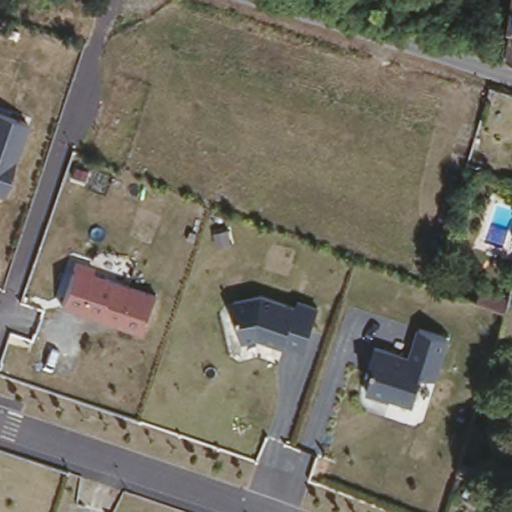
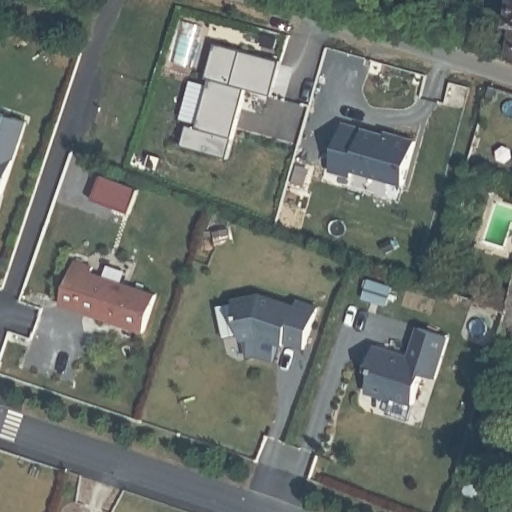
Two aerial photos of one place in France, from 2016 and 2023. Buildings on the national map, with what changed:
new [(279,59),(271,94),(245,87),(226,154),(181,143),(187,123),(197,126),(210,75),(205,74),(215,41),(279,59)]
unchanged [(511,55),(512,43),(512,55),(511,55)]
unchanged [(0,190),(0,110),(27,121),(3,191),(0,190)]
new [(382,131),(383,129),(393,131),(416,137),(403,181),(352,167),(351,173),(330,167),(342,120),(382,131)]
unchanged [(93,266),(93,270),(157,291),(145,332),(63,303),(77,263),(93,266)]
unchanged [(502,329),(505,313),(512,282),(512,332),(502,329)]
unchanged [(262,292),(297,305),(300,296),(318,304),(303,347),(284,340),(282,345),(260,335),(244,340),(235,295),(262,292)]
unchanged [(416,352),(423,323),(448,328),(437,373),(420,369),(415,398),(393,392),(391,395),(371,390),(381,343),(416,352)]

